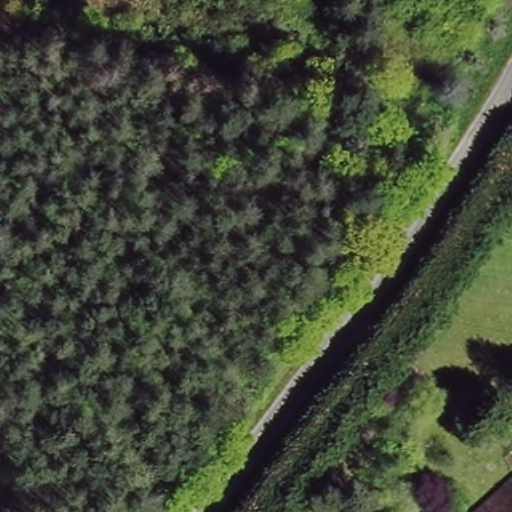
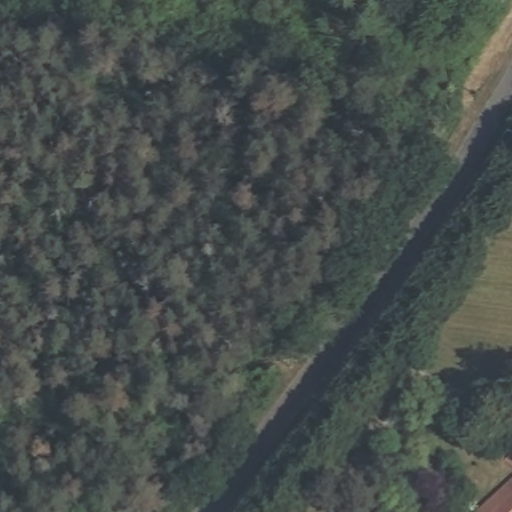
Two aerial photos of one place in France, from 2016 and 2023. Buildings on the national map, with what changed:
unchanged [(450,130),(442,125),(447,115),(458,117),(450,130)]
unchanged [(468,512),(512,471),(512,512),(468,512)]

